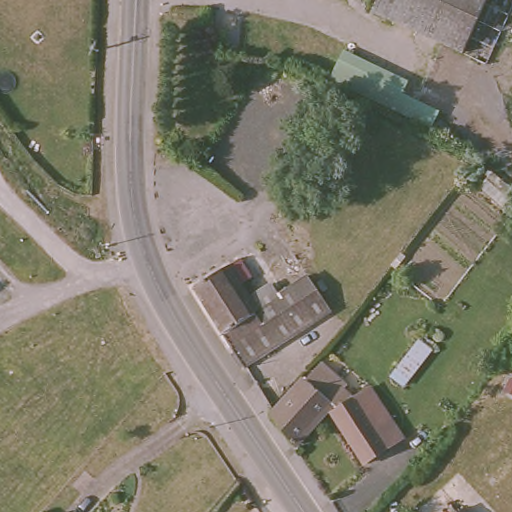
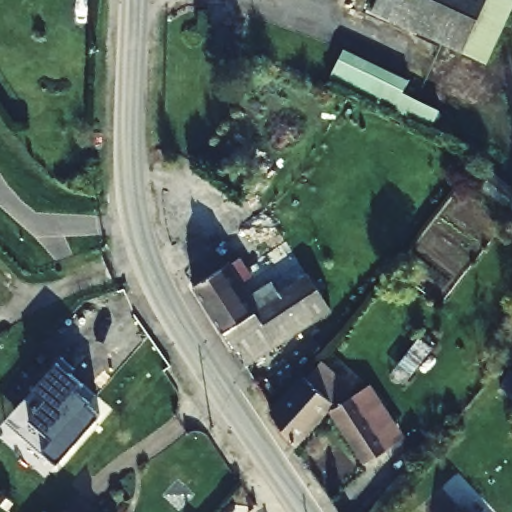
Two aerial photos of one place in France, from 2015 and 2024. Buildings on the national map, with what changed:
unchanged [(370,11),(376,0),(486,0),(462,52),(370,11)]
unchanged [(340,40),(422,83),(405,116),(324,77),(340,40)]
unchanged [(231,266),(244,257),(256,275),(243,284),(260,310),(290,291),(290,289),(311,275),(335,309),(248,366),(199,287),(231,266)]
new [(70,373),(66,377),(80,389),(74,395),(86,406),(84,408),(96,419),(80,437),(75,432),(64,445),(69,450),(54,467),(41,456),(39,459),(13,437),(30,418),(21,411),(30,401),(25,397),(57,361),(70,373)]
unchanged [(280,413),(325,362),(351,385),(348,389),(356,398),(393,451),(372,462),(337,409),(340,408),(335,404),(297,445),(276,416),(280,413)]
unchanged [(371,387),(410,442),(393,451),(356,398),(371,387)]
unchanged [(463,507),(468,512),(459,512),(463,507)]
unchanged [(69,508),(74,512),(65,512),(69,508)]

